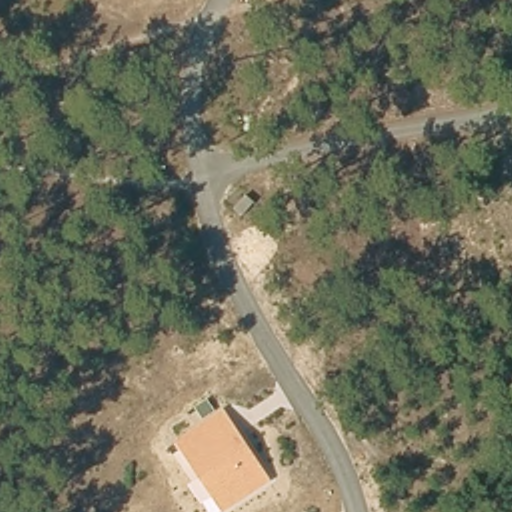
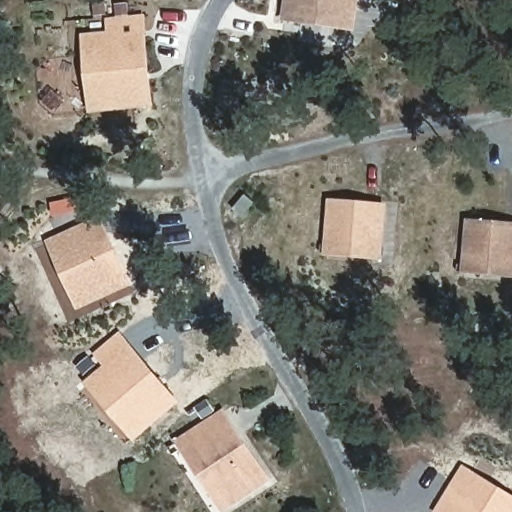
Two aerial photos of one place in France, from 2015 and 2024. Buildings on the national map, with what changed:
new [(286,0),(359,0),(355,32),(283,22),(286,0)]
new [(146,15),(159,108),(90,116),(81,21),(146,15)]
new [(391,206),(386,264),(325,258),(330,199),(391,206)]
new [(76,311),(45,242),(101,217),(133,286),(76,311)]
new [(464,275),(466,220),(512,223),(512,278),(464,275)]
new [(103,367),(92,353),(119,331),(181,403),(133,443),(82,383),(103,367)]
unchanged [(225,512),(211,512),(204,502),(211,497),(174,443),(224,410),(271,482),(225,512)]
new [(512,496),(512,512),(430,512),(463,464),(512,496)]

